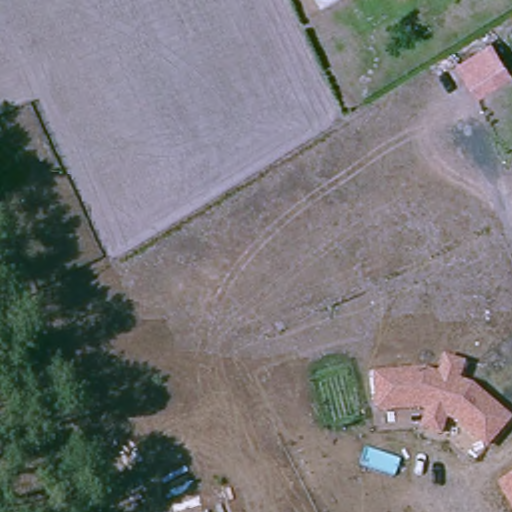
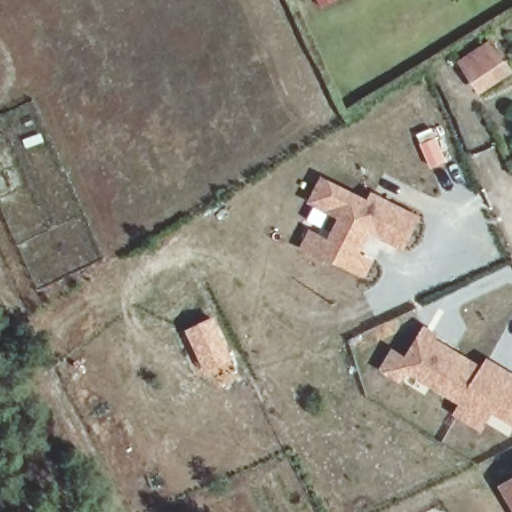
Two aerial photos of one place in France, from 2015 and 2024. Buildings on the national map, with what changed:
unchanged [(458,64),(492,43),(512,74),(512,77),(480,97),(458,64)]
new [(368,198),(371,190),(421,215),(405,250),(370,234),(362,253),(374,259),(366,275),(326,258),(324,262),(299,250),(310,228),(329,237),(338,217),(307,203),(321,174),(368,198)]
new [(424,324),(438,332),(435,339),(482,366),(486,357),(512,373),(512,425),(492,413),(481,431),(450,414),(459,402),(407,373),(400,384),(378,370),(392,347),(406,356),(424,324)]
demolished [(442,348),(471,356),(466,379),(512,416),(512,420),(489,448),(447,417),(441,436),(417,430),(422,409),(372,412),(368,369),(438,370),(442,348)]
unchanged [(512,475),(512,511),(496,484),(512,475)]

